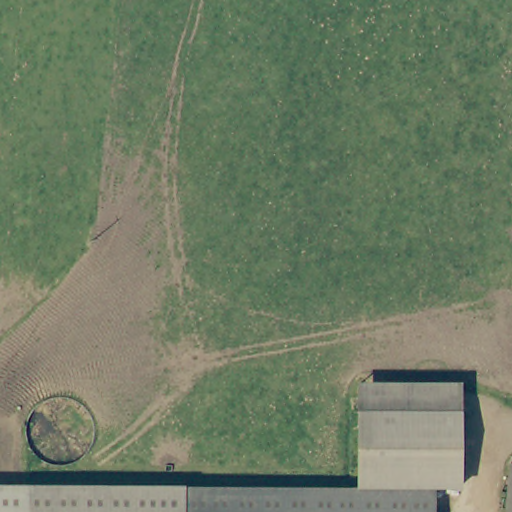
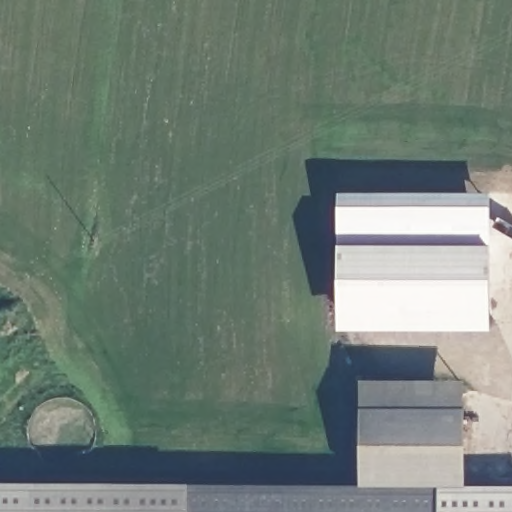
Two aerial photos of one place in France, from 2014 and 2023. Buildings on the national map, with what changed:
new [(338,196),(489,194),(488,331),(338,327),(338,196)]
unchanged [(436,484),(362,484),(356,484),(356,382),(464,382),(462,483),(436,484)]
unchanged [(27,512),(0,512),(0,484),(27,482),(27,512)]
unchanged [(27,512),(27,482),(185,483),(362,484),(436,484),(436,512),(27,512)]
new [(436,512),(436,484),(462,483),(465,483),(465,487),(512,487),(512,512),(436,512)]

